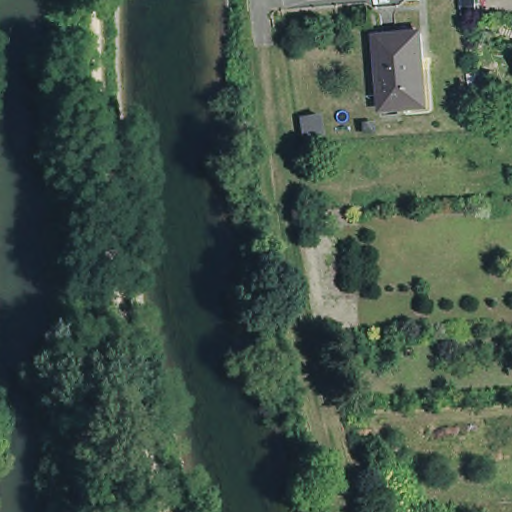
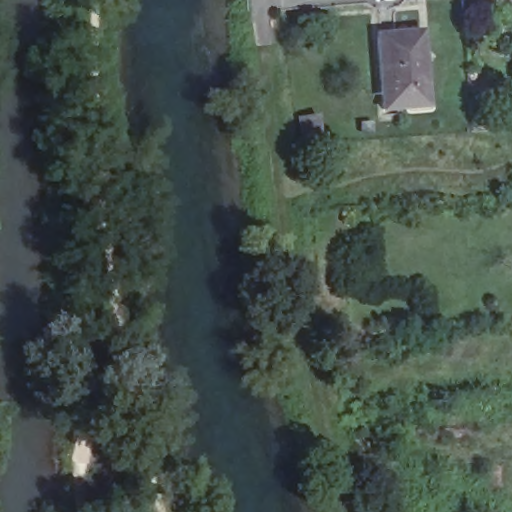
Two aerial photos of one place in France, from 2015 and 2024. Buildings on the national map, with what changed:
unchanged [(425,26),(431,100),(387,104),(381,30),(425,26)]
unchanged [(316,115),(321,140),(299,144),(295,118),(316,115)]

